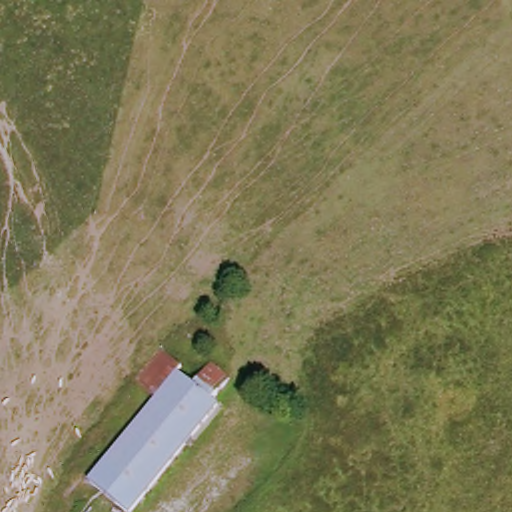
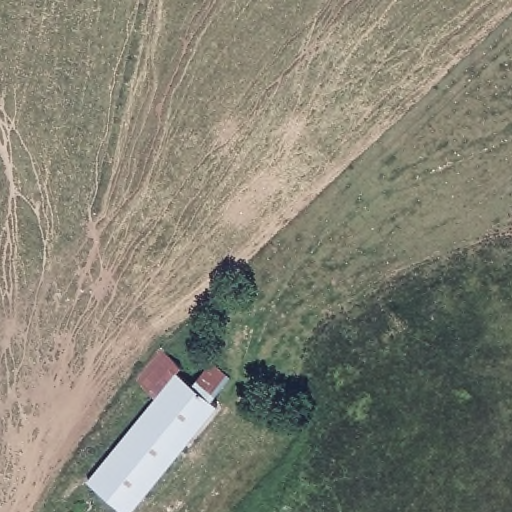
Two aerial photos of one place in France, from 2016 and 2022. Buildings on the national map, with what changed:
unchanged [(213,398),(220,402),(131,512),(126,512),(88,479),(153,395),(134,380),(161,346),(183,363),(179,368),(194,380),(211,358),(232,376),(213,398)]

